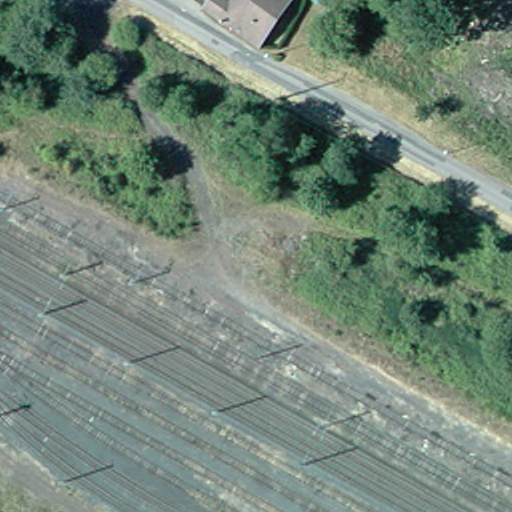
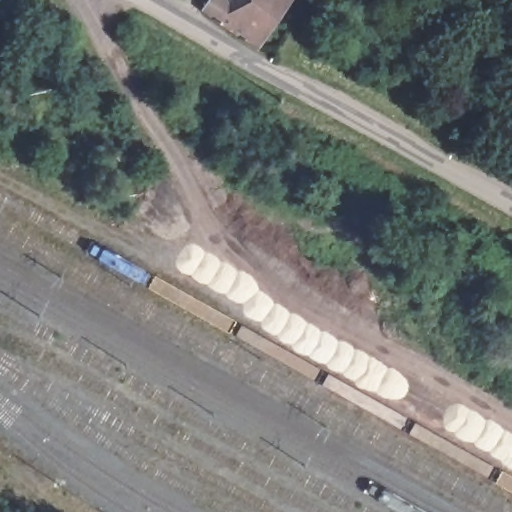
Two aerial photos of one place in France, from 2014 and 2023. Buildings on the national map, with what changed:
unchanged [(268,41),(215,6),(219,0),(296,0),(285,16),(268,41)]

